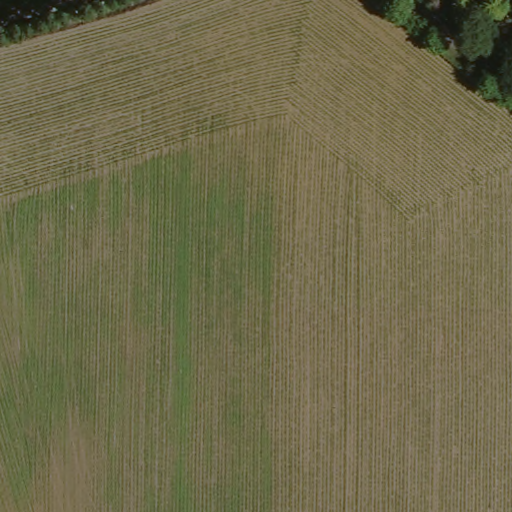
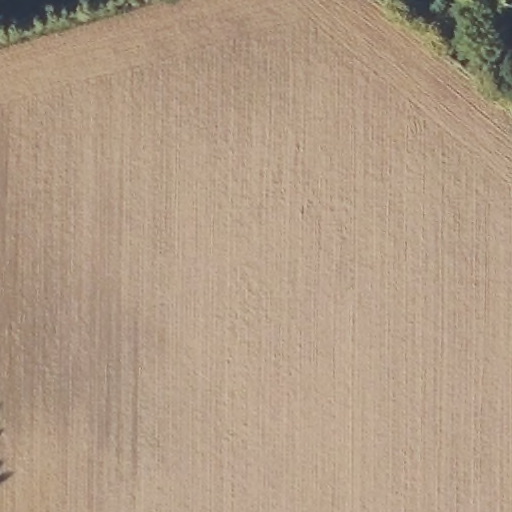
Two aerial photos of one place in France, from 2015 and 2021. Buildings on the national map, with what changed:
[]

